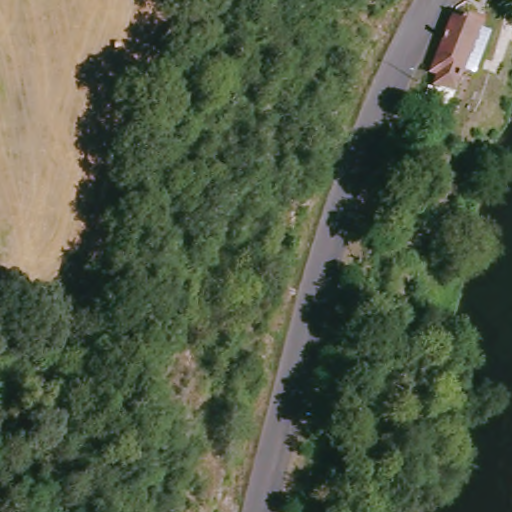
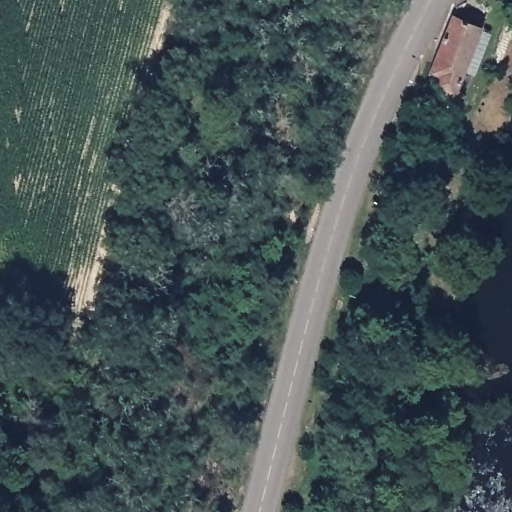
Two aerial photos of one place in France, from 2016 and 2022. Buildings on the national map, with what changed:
unchanged [(458,86),(427,76),(452,9),(461,12),(459,18),(479,25),(458,86)]

